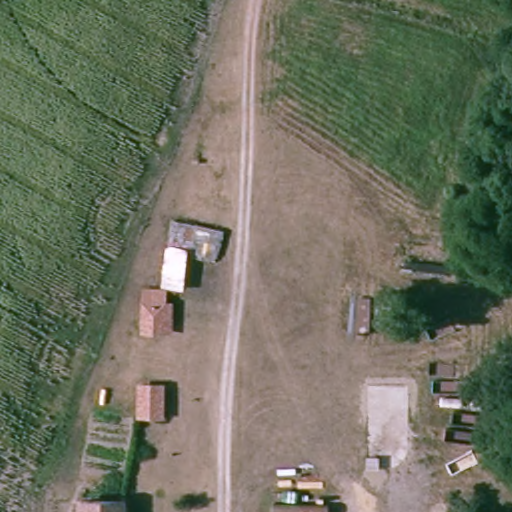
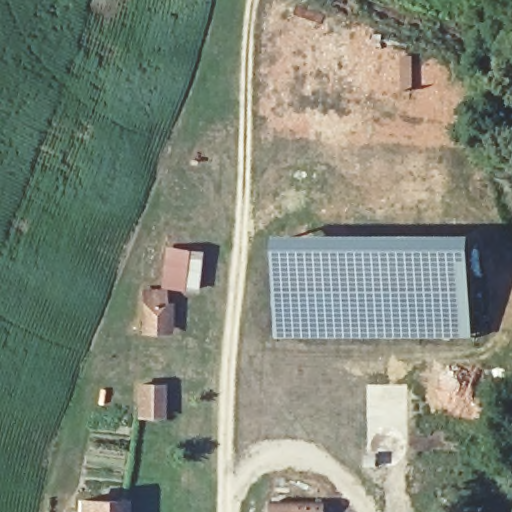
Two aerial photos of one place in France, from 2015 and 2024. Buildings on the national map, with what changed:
new [(275,236),(472,236),(472,333),(275,333),(275,236)]
unchanged [(182,289),(167,288),(169,333),(142,332),(141,286),(162,285),(167,246),(189,247),(182,289)]
unchanged [(162,382),(159,413),(139,412),(142,381),(162,382)]
unchanged [(129,512),(79,512),(80,500),(130,502),(129,512)]

